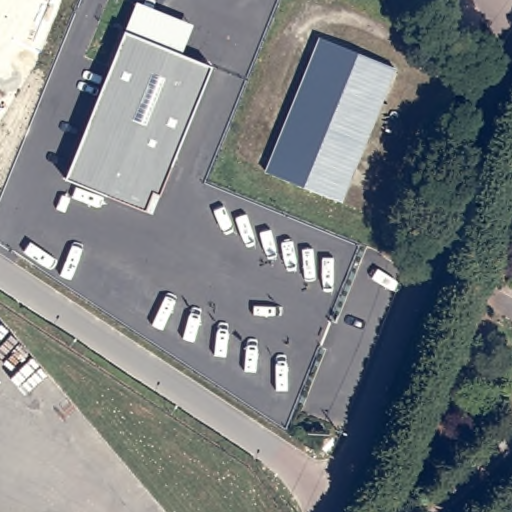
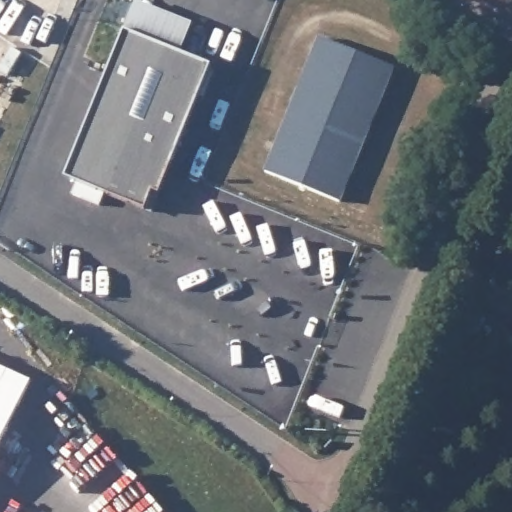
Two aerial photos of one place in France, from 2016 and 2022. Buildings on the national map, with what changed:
unchanged [(195,25),(183,54),(213,66),(155,215),(65,178),(137,2),(195,25)]
unchanged [(341,202),(268,172),(324,40),(396,71),(341,202)]
new [(30,381),(0,448),(0,367),(30,381)]

